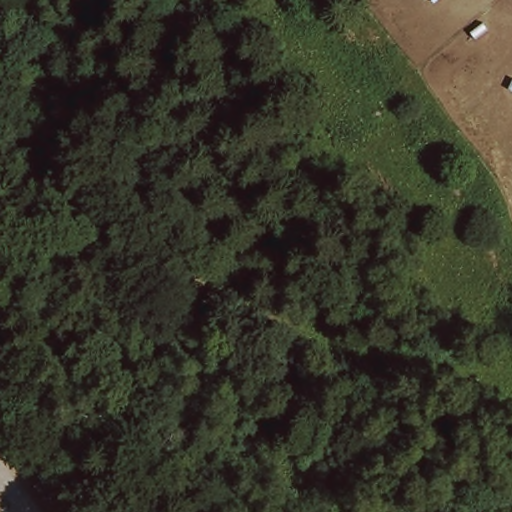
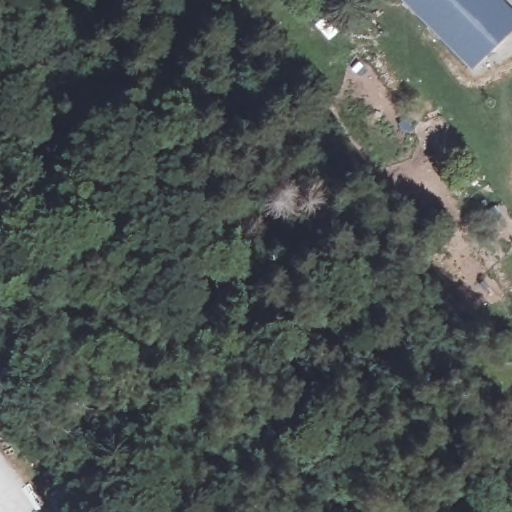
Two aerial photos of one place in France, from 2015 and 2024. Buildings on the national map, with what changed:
new [(402,0),(503,0),(512,10),(512,30),(472,70),(402,0)]

